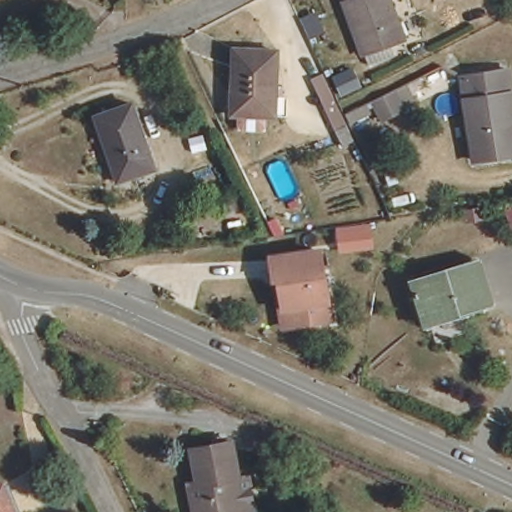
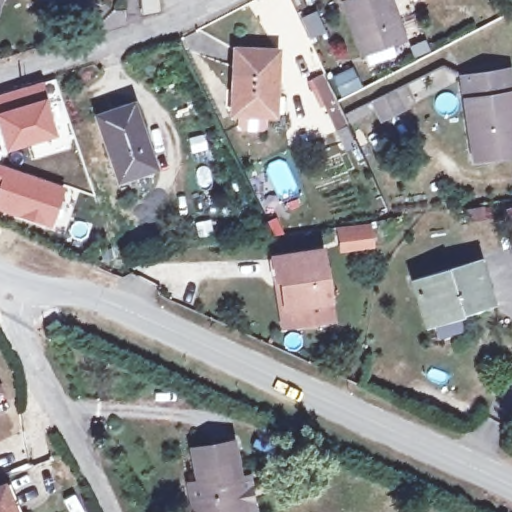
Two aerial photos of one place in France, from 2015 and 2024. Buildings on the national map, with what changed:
unchanged [(388,0),(407,47),(368,63),(344,0),(388,0)]
unchanged [(265,130),(245,130),(241,125),(242,115),(235,115),(237,50),(280,52),(279,116),(270,116),(269,127),(265,130)]
unchanged [(510,85),(512,101),(512,155),(477,160),(464,75),(497,70),(507,68),(510,85)]
new [(42,80),(56,134),(4,150),(0,136),(0,92),(42,80)]
unchanged [(390,100),(400,117),(378,129),(369,110),(390,100)]
unchanged [(97,120),(132,108),(155,170),(119,184),(97,120)]
unchanged [(342,157),(327,124),(337,120),(352,152),(342,157)]
new [(67,186),(52,229),(0,211),(0,163),(67,186)]
unchanged [(464,221),(482,219),(484,232),(465,235),(464,221)]
new [(344,247),(342,231),(340,226),(373,221),(374,227),(376,242),(344,247)]
unchanged [(313,320),(290,323),(285,324),(279,277),(277,256),(325,250),(332,310),(333,318),(313,320)]
unchanged [(417,280),(480,266),(490,310),(427,325),(417,280)]
new [(5,393),(0,396),(0,385),(5,393)]
unchanged [(247,510),(239,512),(209,512),(201,484),(209,480),(202,450),(237,438),(247,474),(255,507),(247,510)]
unchanged [(10,512),(0,512),(0,487),(10,512)]

